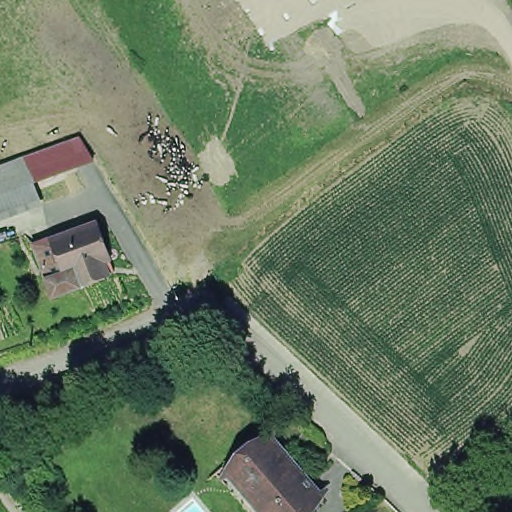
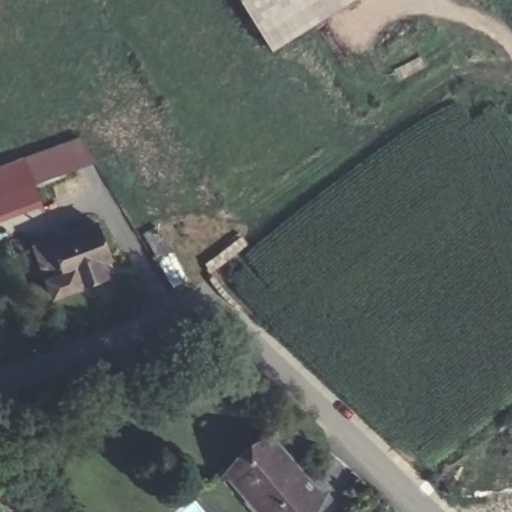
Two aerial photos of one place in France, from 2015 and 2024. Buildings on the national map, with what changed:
new [(239,0),(359,0),(271,54),(239,0)]
unchanged [(93,162),(0,200),(0,168),(81,137),(93,162)]
unchanged [(81,262),(73,265),(60,229),(102,215),(116,247),(113,249),(119,263),(87,276),(81,262)]
unchanged [(63,285),(43,235),(60,229),(73,265),(81,262),(87,276),(63,285)]
unchanged [(255,495),(238,473),(254,459),(254,453),(276,435),(296,457),(290,463),(321,500),(307,512),(270,512),(273,510),(259,492),(255,495)]

